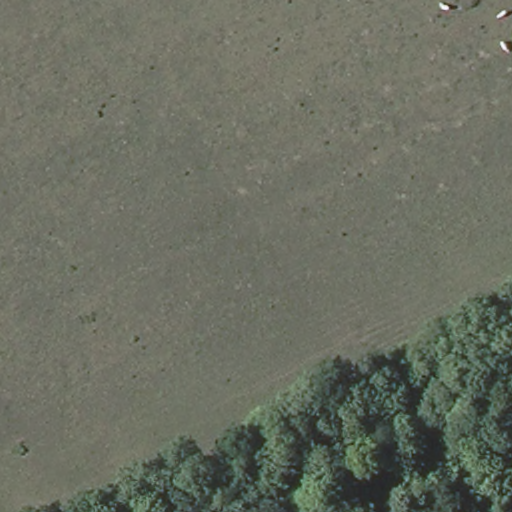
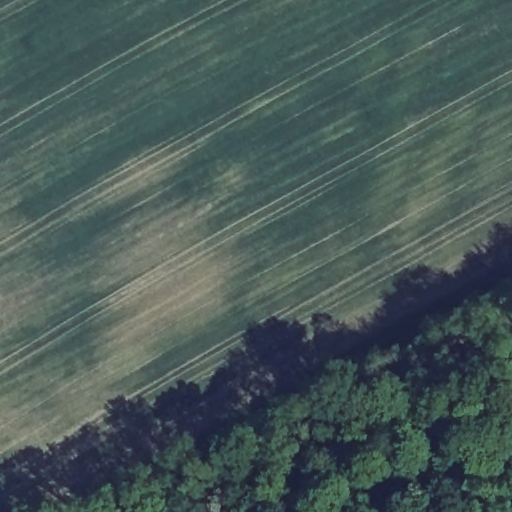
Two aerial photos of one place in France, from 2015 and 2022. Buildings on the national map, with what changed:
[]

